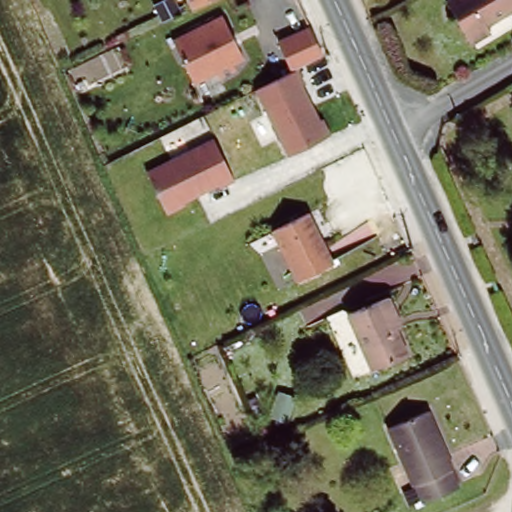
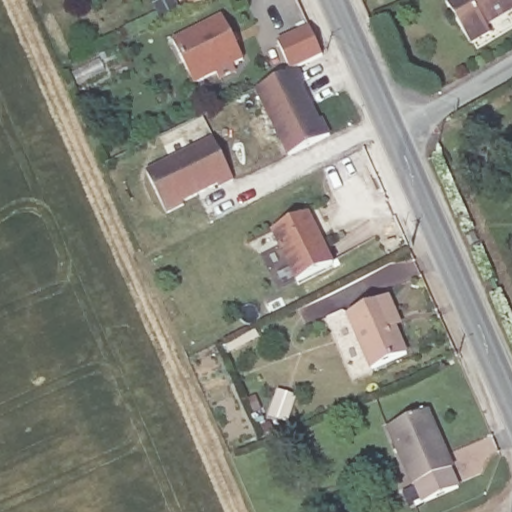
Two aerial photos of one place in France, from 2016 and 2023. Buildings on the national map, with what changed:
unchanged [(184,0),(207,0),(189,9),(184,0)]
unchanged [(473,41),(448,1),(450,0),(512,0),(512,9),(490,24),(493,29),(473,41)]
unchanged [(222,16),(243,60),(233,65),(237,74),(220,82),(216,75),(193,85),(172,40),(222,16)]
unchanged [(290,71),(276,42),(311,26),(325,58),(299,71),(330,135),(286,158),(254,90),(290,71)]
unchanged [(212,139),(235,183),(165,217),(145,172),(212,139)]
unchanged [(305,219),(330,269),(294,287),(268,236),(305,219)]
unchanged [(396,318),(392,320),(407,359),(372,373),(349,316),(388,300),(396,318)]
unchanged [(453,469),(450,470),(457,487),(423,502),(415,486),(412,487),(387,432),(428,414),(453,469)]

